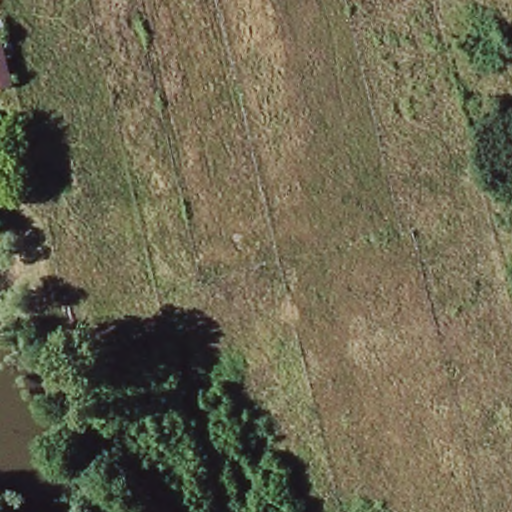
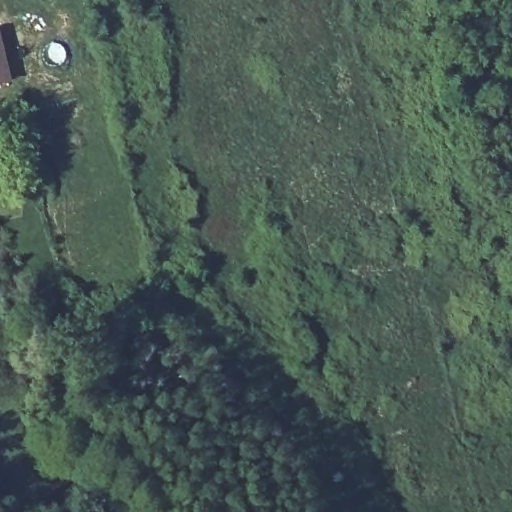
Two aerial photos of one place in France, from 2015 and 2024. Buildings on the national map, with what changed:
unchanged [(17,80),(0,84),(0,39),(7,37),(17,80)]

